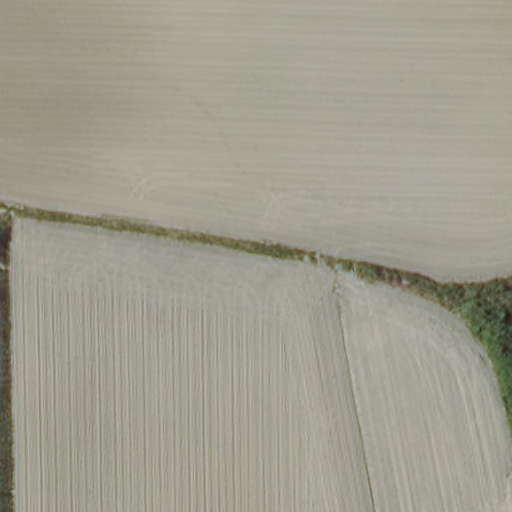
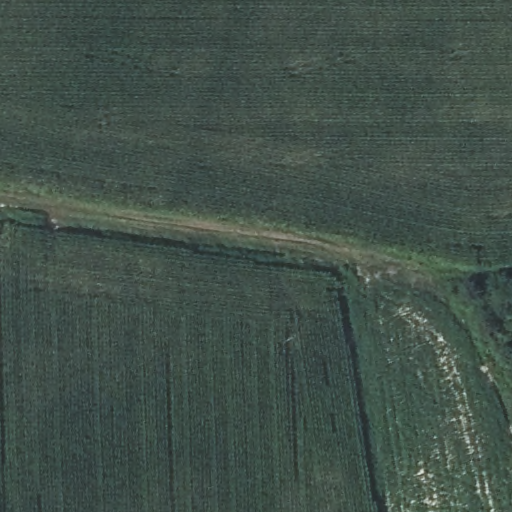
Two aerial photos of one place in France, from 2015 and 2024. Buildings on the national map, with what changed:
[]

